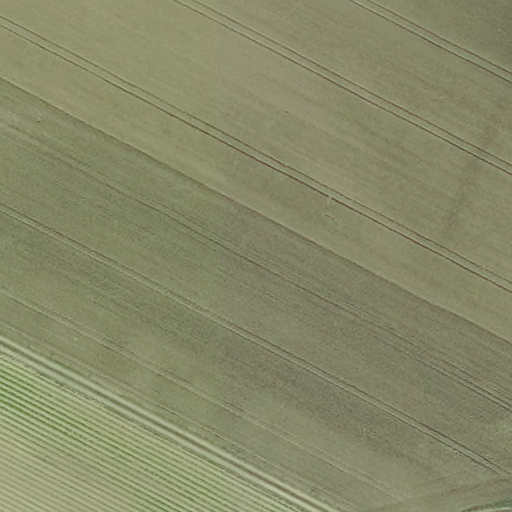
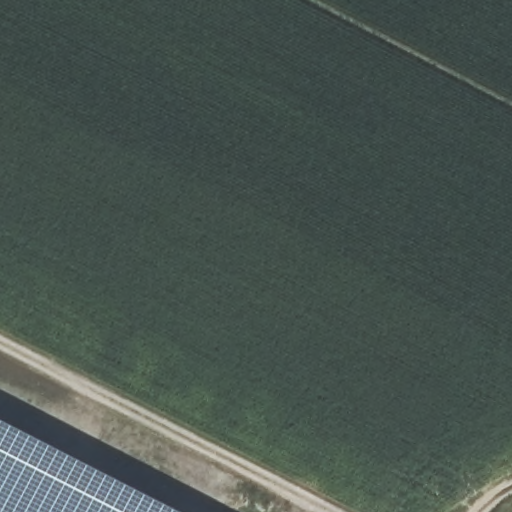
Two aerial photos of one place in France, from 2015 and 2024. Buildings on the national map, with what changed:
new [(0,512),(0,428),(172,512),(0,512)]

